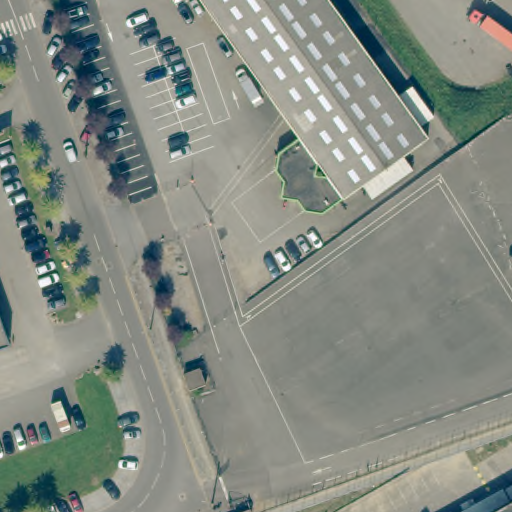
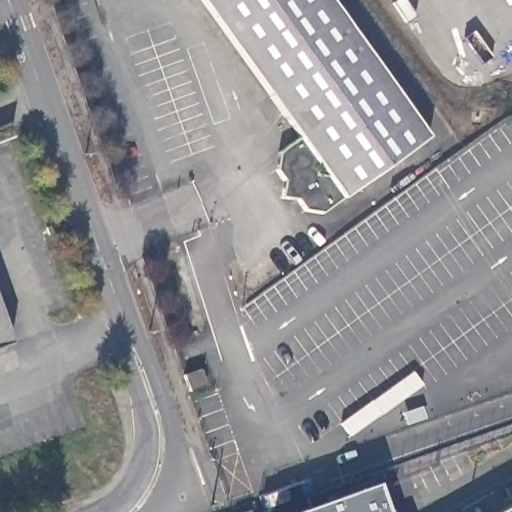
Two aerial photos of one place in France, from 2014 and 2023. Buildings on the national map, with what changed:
unchanged [(306,214),(295,199),(289,203),(276,186),(283,182),(275,172),(278,154),(296,141),(194,0),(326,0),(425,137),(320,214),(306,214)]
unchanged [(0,312),(10,340),(0,343),(0,312)]
unchanged [(200,377),(206,380),(208,387),(205,395),(196,396),(192,392),(190,385),(192,380),(200,377)]
new [(376,485),(386,512),(301,512),(376,485)]
unchanged [(512,499),(512,512),(489,512),(512,499)]

